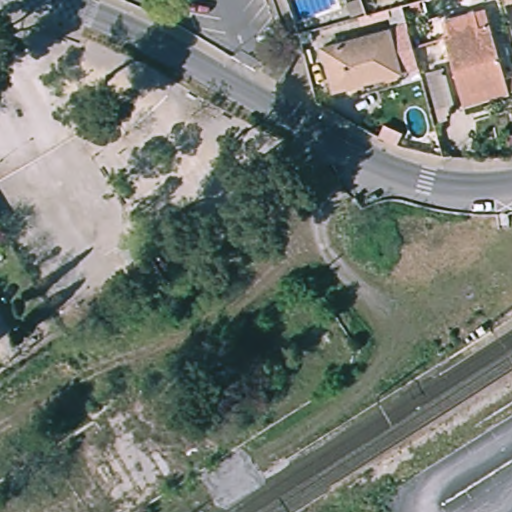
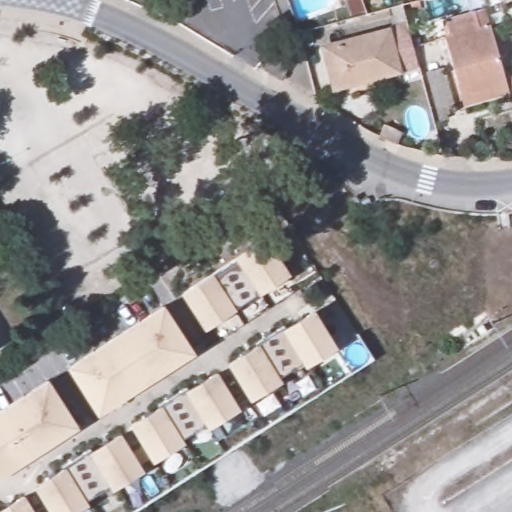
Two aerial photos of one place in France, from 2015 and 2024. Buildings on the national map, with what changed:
unchanged [(506,0),(512,0),(512,3),(507,4),(506,0)]
unchanged [(272,23),(265,25),(260,12),(267,9),(272,23)]
unchanged [(510,75),(512,83),(512,91),(505,92),(505,95),(458,107),(439,36),(443,35),(440,19),(481,9),(500,78),(510,75)]
unchanged [(398,71),(334,88),(323,47),(388,30),(398,71)]
unchanged [(292,62),(280,79),(263,68),(274,51),(292,62)]
unchanged [(447,101),(435,104),(430,82),(442,79),(447,101)]
unchanged [(1,227),(0,228),(0,227),(1,227)]
new [(206,327),(184,292),(266,239),(286,274),(206,327)]
unchanged [(180,259),(161,271),(151,256),(170,244),(180,259)]
new [(175,362),(114,402),(98,410),(70,366),(77,361),(154,312),(164,306),(189,353),(175,362)]
new [(314,313),(333,347),(307,364),(304,360),(276,376),(278,382),(250,397),(229,363),(257,347),(254,343),(284,325),(286,329),(314,313)]
unchanged [(486,331),(480,335),(477,329),(482,325),(486,331)]
new [(216,375),(236,409),(209,425),(207,422),(179,439),(181,442),(153,459),(132,424),(159,409),(157,404),(187,386),(188,391),(216,375)]
new [(0,477),(0,410),(48,381),(76,427),(0,477)]
new [(118,434),(140,471),(112,487),(110,483),(83,500),(85,503),(70,512),(51,512),(35,486),(63,470),(60,464),(88,446),(91,449),(118,434)]
new [(24,494),(35,512),(0,512),(0,509),(24,494)]

